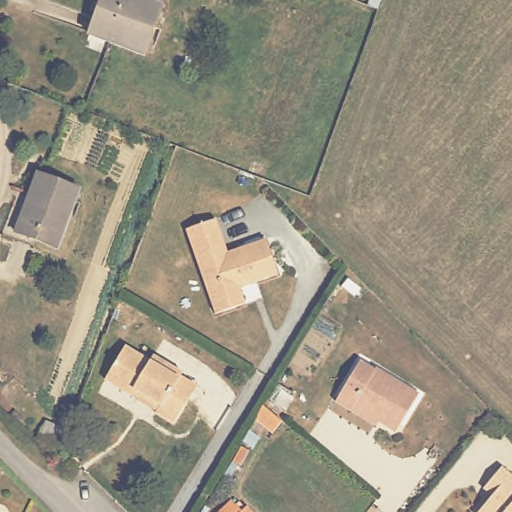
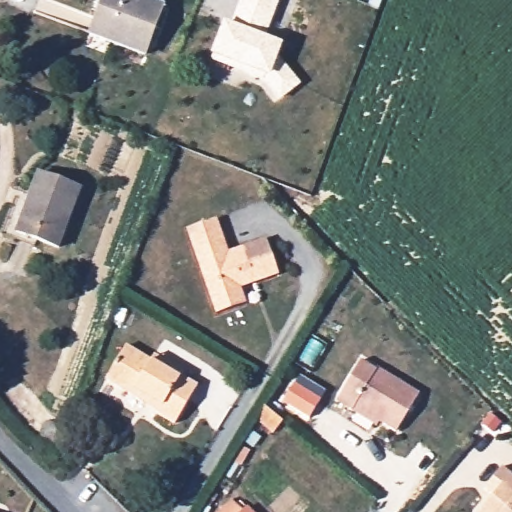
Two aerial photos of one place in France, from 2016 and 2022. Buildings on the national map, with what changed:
unchanged [(143,54),(89,34),(101,0),(151,0),(161,4),(143,54)]
new [(222,32),(229,34),(235,19),(242,0),(276,0),(259,45),(277,52),(272,65),(275,66),(295,90),(279,104),(263,85),(245,79),(209,66),(211,61),(222,32)]
unchanged [(54,246),(13,230),(34,173),(75,189),(54,246)]
unchanged [(266,238),(279,275),(240,288),(245,305),(215,315),(185,229),(217,220),(227,250),(266,238)]
unchanged [(183,375),(199,384),(176,423),(158,413),(161,407),(136,393),(135,396),(107,381),(127,347),(150,360),(155,352),(166,359),(186,371),(183,375)]
unchanged [(336,402),(361,361),(376,370),(378,367),(420,394),(396,433),(378,422),(376,427),(336,402)]
unchanged [(262,406),(284,424),(274,436),(254,419),(262,406)]
unchanged [(486,490),(504,468),(512,475),(512,512),(484,512),(495,498),(486,490)]
unchanged [(243,512),(247,507),(252,512),(243,512)]

